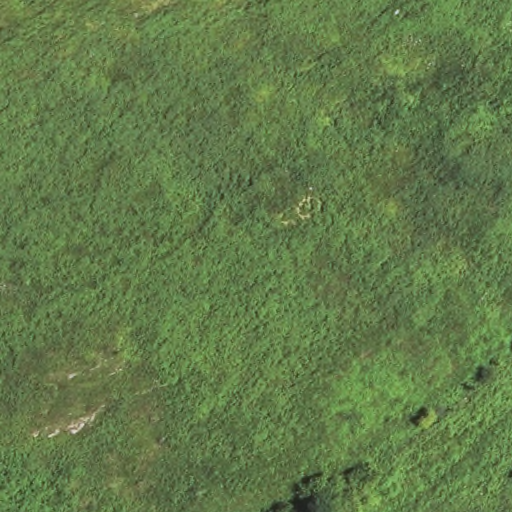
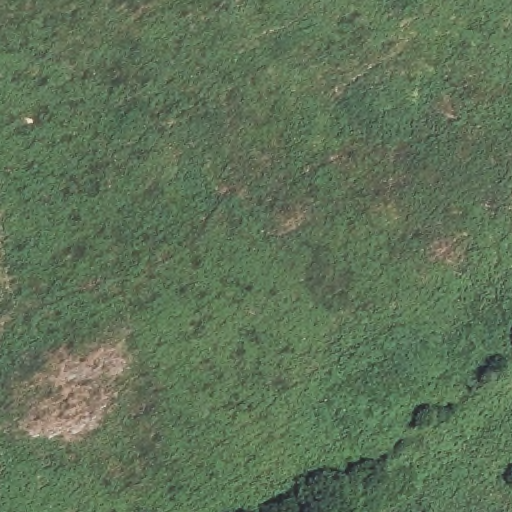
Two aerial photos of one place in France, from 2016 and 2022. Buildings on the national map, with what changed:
[]

